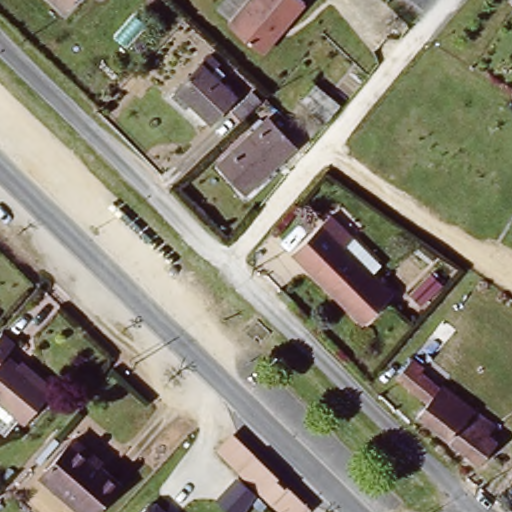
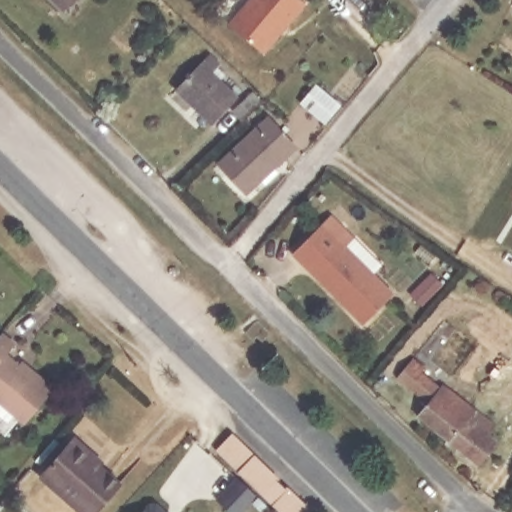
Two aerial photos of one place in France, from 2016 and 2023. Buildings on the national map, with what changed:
unchanged [(65,5),(59,0),(70,0),(65,5)]
unchanged [(269,47),(237,19),(250,0),(307,0),(269,47)]
unchanged [(210,71),(220,79),(213,86),(231,103),(207,127),(173,93),(205,60),(212,68),(210,71)]
unchanged [(334,101),(321,118),(297,99),(310,82),(334,101)]
unchanged [(254,107),(235,125),(227,116),(246,99),(254,107)]
unchanged [(257,179),(241,193),(214,165),(262,119),(287,145),(265,165),(272,172),(261,184),(257,179)]
unchanged [(352,243),(344,251),(391,298),(362,327),(322,287),(315,280),(292,258),(330,220),(352,243)]
unchanged [(265,327),(257,336),(252,331),(248,335),(240,327),(252,315),(265,327)]
unchanged [(0,396),(0,335),(5,330),(7,326),(21,337),(12,348),(25,358),(27,353),(60,381),(57,384),(32,415),(3,392),(0,396)]
unchanged [(442,389),(490,428),(494,431),(487,440),(497,448),(478,470),(466,460),(462,465),(455,459),(459,455),(417,420),(428,407),(408,391),(397,381),(412,362),(424,372),(420,376),(440,392),(442,389)]
unchanged [(100,467),(107,474),(119,484),(120,484),(97,512),(86,512),(44,475),(43,474),(71,443),(72,444),(100,467)]
unchanged [(223,460),(237,446),(290,497),(305,512),(277,512),(276,511),(223,460)]
unchanged [(150,500),(158,507),(159,512),(134,512),(143,500),(150,500)]
unchanged [(163,511),(164,512),(160,512),(162,510),(163,511)]

